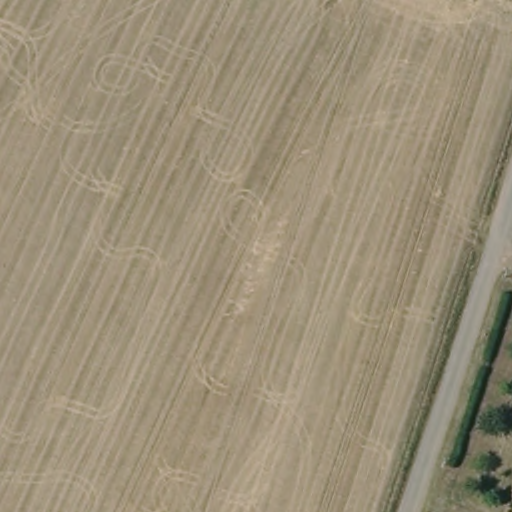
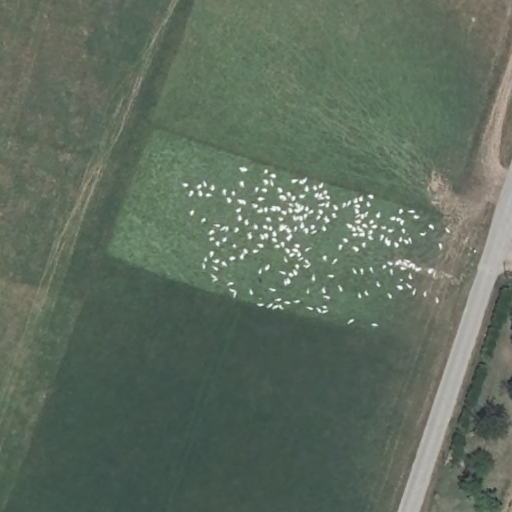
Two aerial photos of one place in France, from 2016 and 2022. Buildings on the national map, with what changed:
[]

